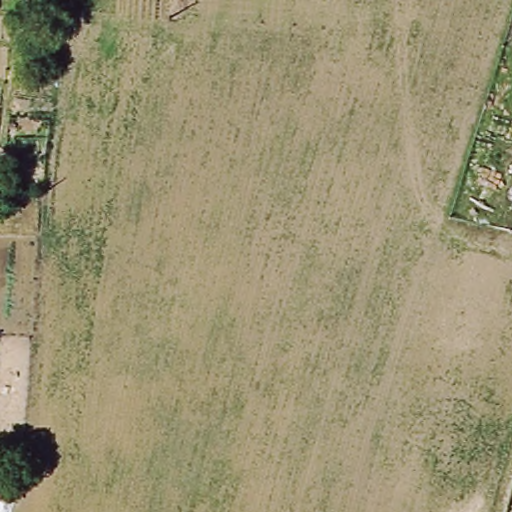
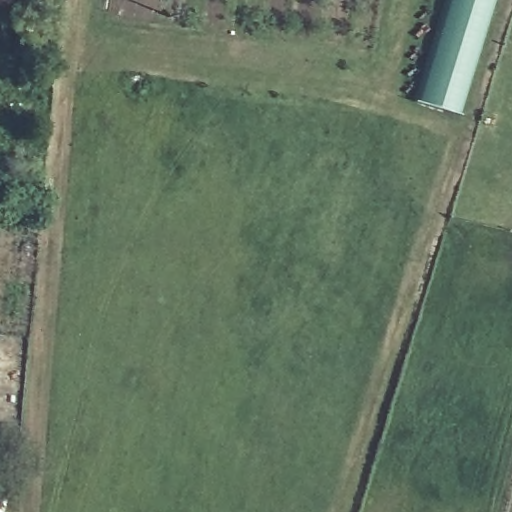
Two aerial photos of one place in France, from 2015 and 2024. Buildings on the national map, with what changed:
new [(427,55),(447,0),(496,0),(487,29),(459,116),(413,100),(427,55)]
unchanged [(3,512),(0,512),(0,499),(4,499),(3,512)]

